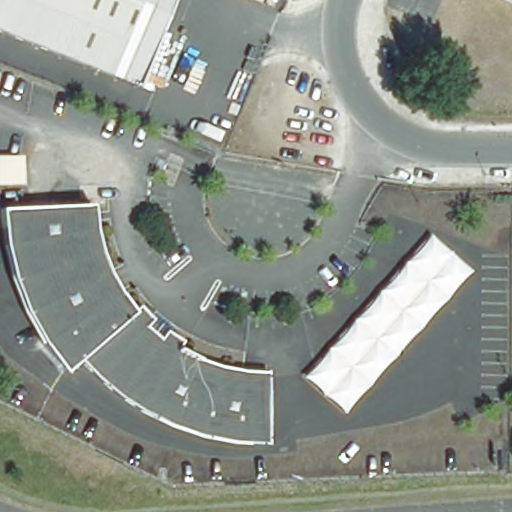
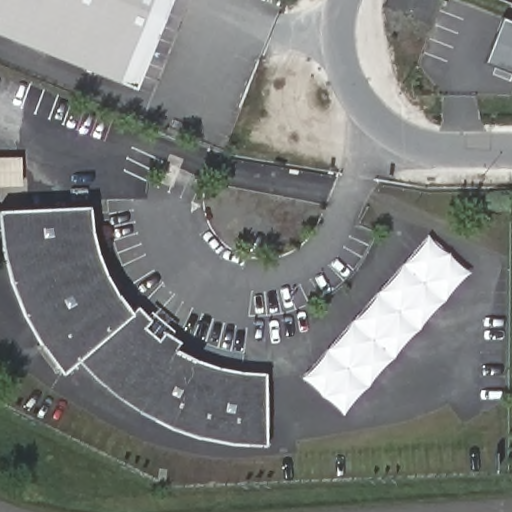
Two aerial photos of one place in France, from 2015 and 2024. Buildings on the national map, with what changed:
unchanged [(136,86),(0,33),(0,0),(169,0),(136,86)]
unchanged [(512,7),(494,0),(512,0),(512,7)]
new [(512,20),(512,72),(485,61),(503,17),(512,20)]
unchanged [(174,348),(168,355),(181,361),(192,366),(179,401),(176,408),(167,432),(160,430),(144,420),(125,411),(105,395),(86,378),(73,362),(52,377),(37,357),(23,332),(11,307),(0,276),(0,273),(0,209),(85,207),(89,232),(94,262),(104,283),(115,305),(125,317),(132,312),(145,323),(159,335),(174,348)]
unchanged [(345,413),(303,378),(430,235),(470,271),(345,413)]
unchanged [(196,367),(214,375),(236,379),(251,378),(259,378),(260,449),(229,448),(202,442),(181,438),(167,432),(176,408),(179,401),(192,366),(196,367)]

